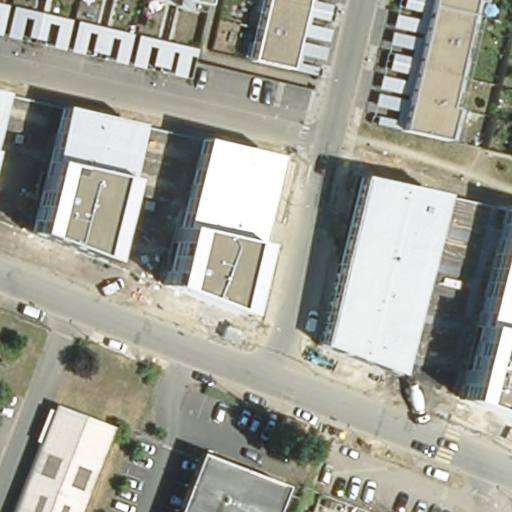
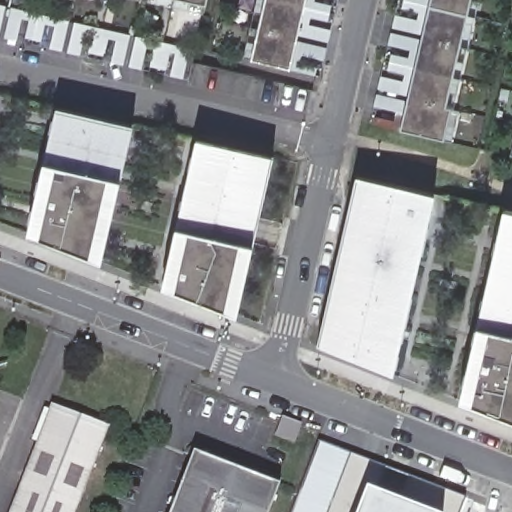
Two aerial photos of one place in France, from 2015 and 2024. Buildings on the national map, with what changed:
unchanged [(209,4),(189,0),(210,0),(209,4)]
unchanged [(292,69),(251,60),(266,0),(308,0),(292,69)]
unchanged [(447,108),(453,109),(445,140),(402,131),(433,0),(472,0),(447,108)]
unchanged [(122,178),(102,262),(28,233),(44,161),(57,107),(133,126),(122,178)]
unchanged [(237,313),(163,285),(177,227),(198,139),(273,156),(254,244),(237,313)]
unchanged [(394,376),(318,345),(355,176),(436,195),(394,376)]
unchanged [(476,326),(503,210),(512,212),(512,419),(460,400),(476,326)]
unchanged [(7,512),(48,403),(107,425),(75,512),(7,512)]
unchanged [(275,426),(280,414),(299,421),(295,433),(292,441),(273,434),(276,426),(275,426)]
new [(465,498),(460,512),(292,512),(319,441),(465,498)]
unchanged [(170,512),(190,460),(212,468),(195,512),(170,512)]
unchanged [(195,512),(212,468),(276,493),(269,512),(195,512)]

